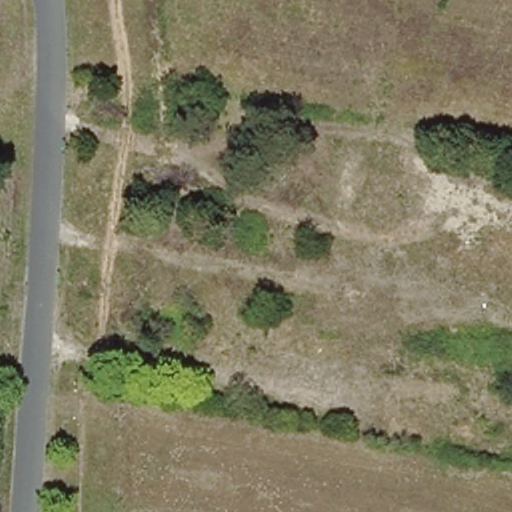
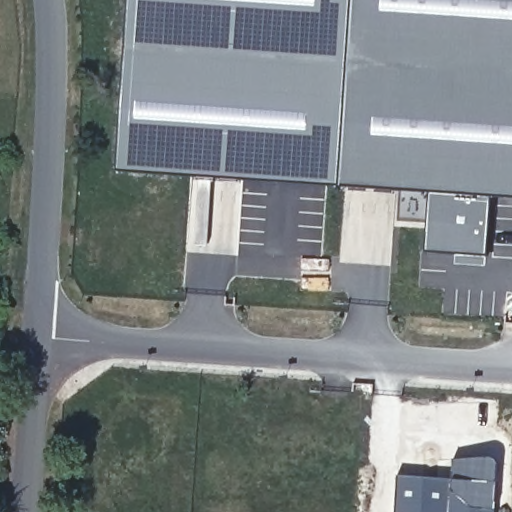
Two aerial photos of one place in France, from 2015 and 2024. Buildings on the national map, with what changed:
new [(130,0),(352,0),(340,185),(116,170),(130,0)]
new [(492,195),(489,255),(426,250),(430,190),(340,185),(352,0),(512,0),(512,196),(492,195)]
demolished [(353,140),(404,149),(390,227),(340,218),(353,140)]
new [(430,190),(428,220),(398,219),(400,189),(430,190)]
demolished [(271,375),(221,365),(226,332),(278,342),(271,375)]
demolished [(375,363),(465,382),(485,388),(475,436),(455,432),(367,418),(375,363)]
new [(397,475),(452,478),(453,460),(489,456),(494,457),(497,461),(495,510),(494,512),(396,512),(397,475)]

